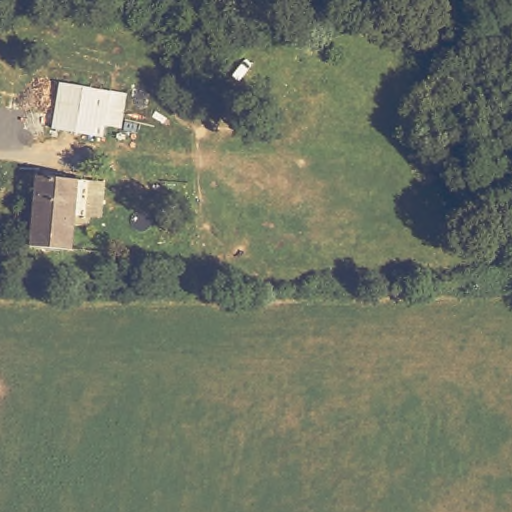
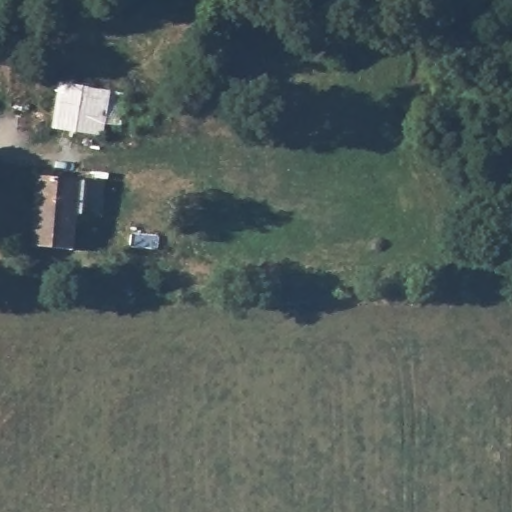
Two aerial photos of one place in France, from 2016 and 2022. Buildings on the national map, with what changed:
unchanged [(130,95),(125,127),(108,127),(105,141),(53,132),(60,82),(130,95)]
unchanged [(66,253),(28,247),(38,177),(86,184),(103,187),(98,222),(81,221),(71,219),(66,253)]

